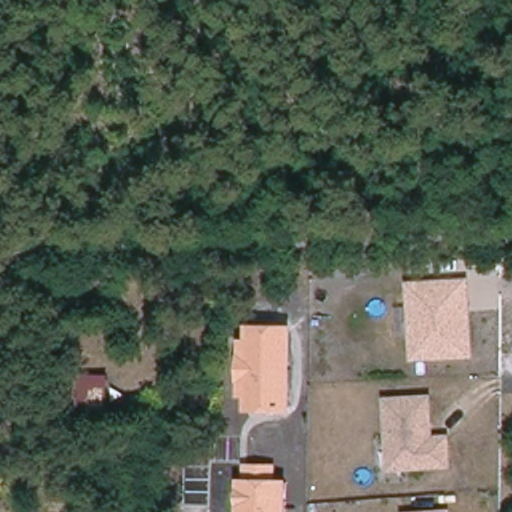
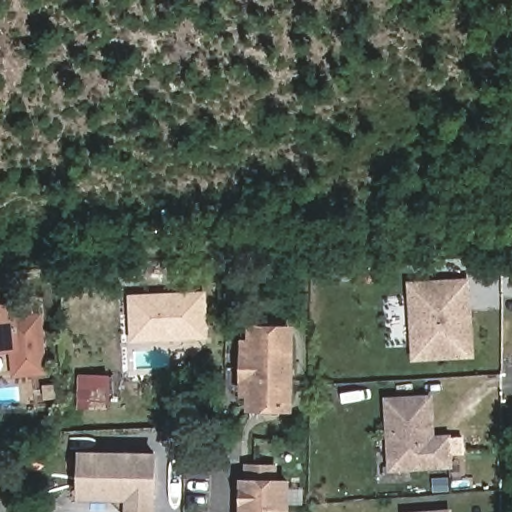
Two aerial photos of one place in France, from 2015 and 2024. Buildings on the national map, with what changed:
unchanged [(475,356),(413,361),(408,281),(470,277),(475,356)]
new [(131,340),(130,295),(208,291),(209,338),(131,340)]
new [(13,377),(10,352),(0,353),(0,303),(18,301),(19,316),(44,311),(50,373),(13,377)]
unchanged [(247,324),(294,325),(294,411),(246,411),(246,397),(240,397),(240,339),(248,339),(247,324)]
unchanged [(83,410),(84,375),(109,375),(109,411),(83,410)]
unchanged [(431,399),(433,438),(449,437),(450,465),(391,469),(388,401),(431,399)]
new [(126,500),(79,500),(78,451),(156,451),(157,512),(126,512),(126,500)]
unchanged [(280,478),(288,479),(288,512),(238,512),(239,478),(245,478),(245,463),(278,463),(280,478)]

